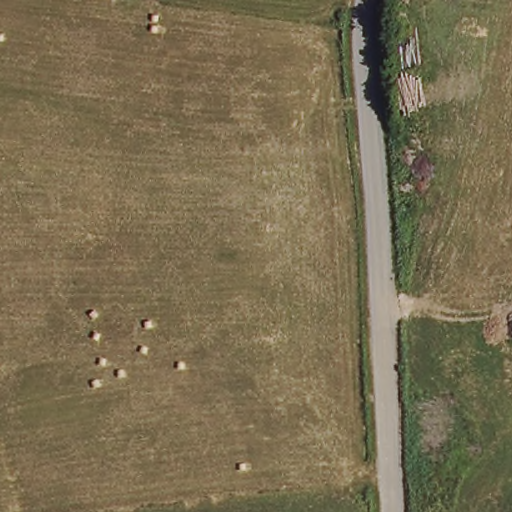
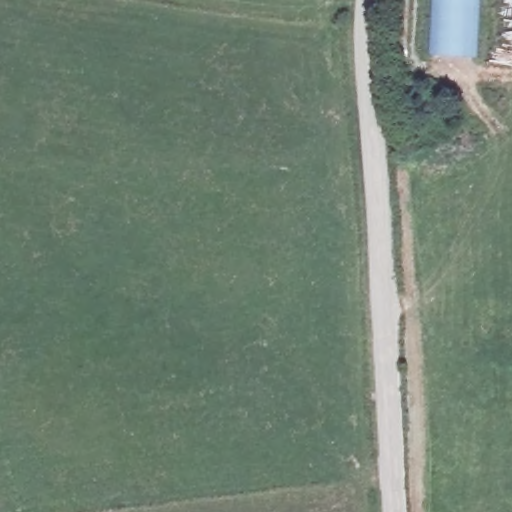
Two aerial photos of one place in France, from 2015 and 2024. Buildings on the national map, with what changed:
new [(481,0),(479,58),(432,56),(434,0),(481,0)]

